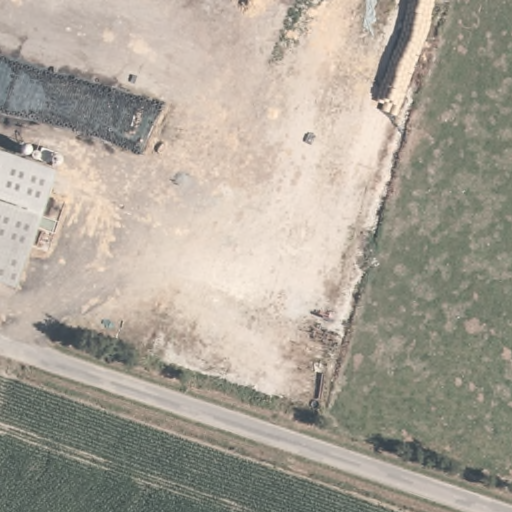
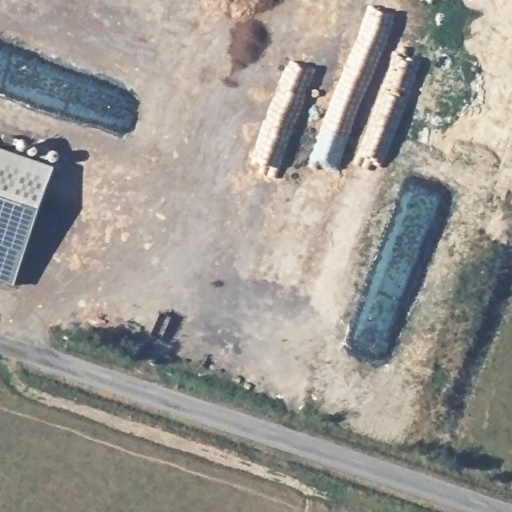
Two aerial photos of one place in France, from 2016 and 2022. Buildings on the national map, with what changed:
unchanged [(14,288),(0,283),(0,153),(56,174),(14,288)]

